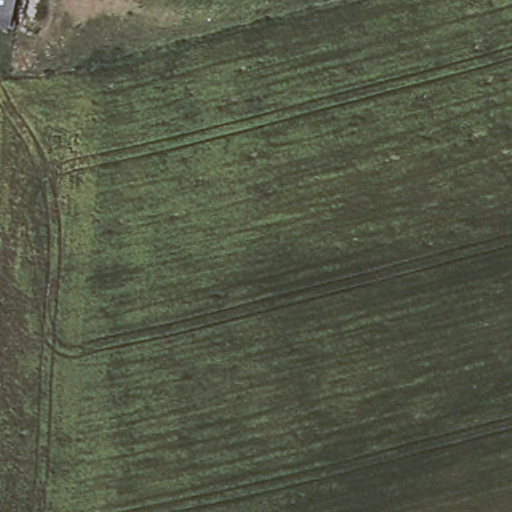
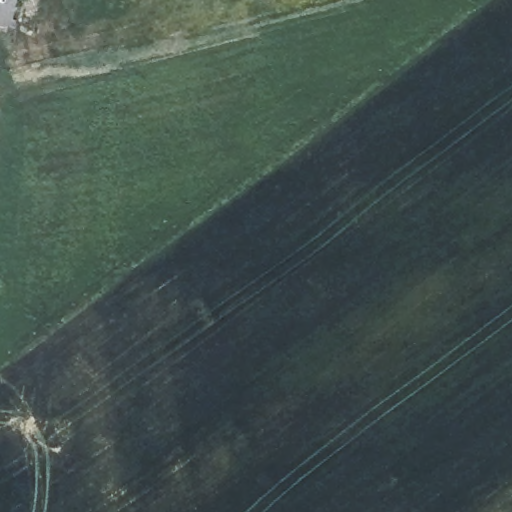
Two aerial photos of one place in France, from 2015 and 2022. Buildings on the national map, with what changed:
unchanged [(0,23),(0,0),(16,0),(10,26),(0,23)]

